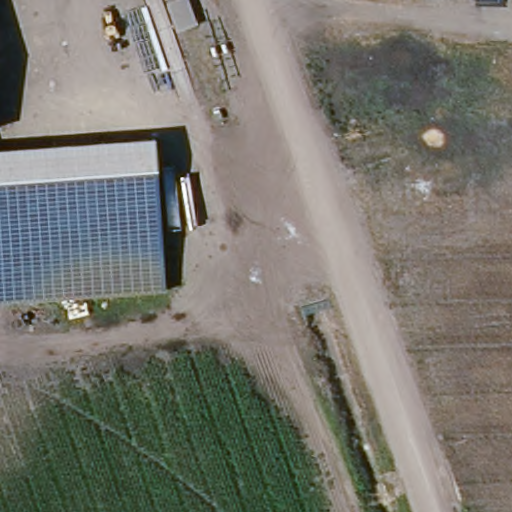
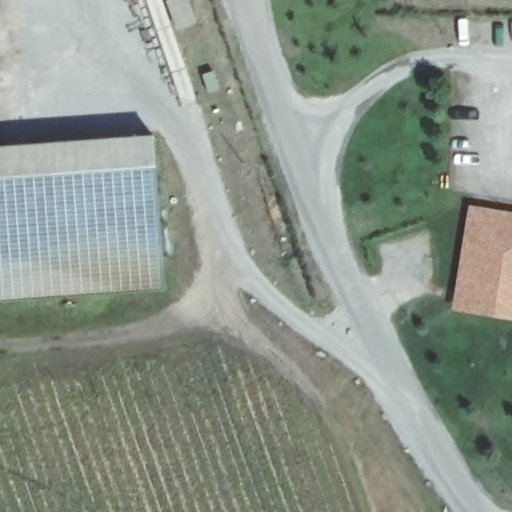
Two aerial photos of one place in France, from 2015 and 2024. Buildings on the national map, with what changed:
unchanged [(175,0),(188,0),(197,26),(177,31),(167,3),(175,0)]
unchanged [(0,300),(0,144),(159,131),(170,289),(0,300)]
new [(476,216),(512,222),(512,304),(463,297),(476,216)]
new [(463,297),(512,304),(512,319),(460,311),(463,297)]

